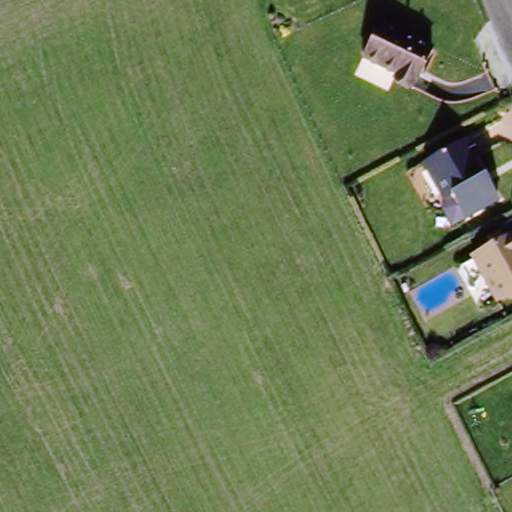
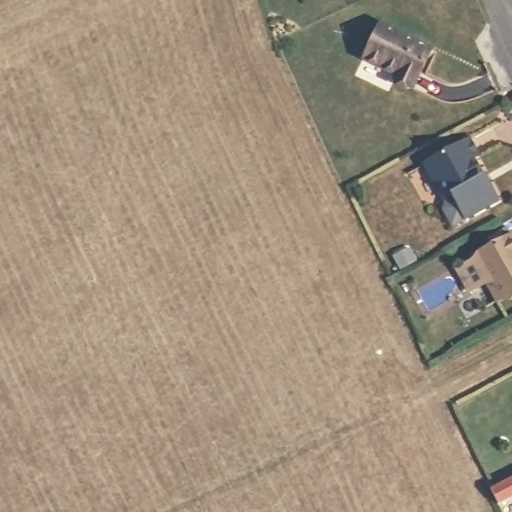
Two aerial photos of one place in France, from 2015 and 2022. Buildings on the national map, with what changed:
unchanged [(417,91),(400,82),(403,75),(370,59),(389,26),(438,51),(417,91)]
unchanged [(478,148),(472,151),(483,170),(480,172),(485,181),(490,179),(499,194),(466,213),(452,190),(446,193),(423,157),(468,131),(478,148)]
unchanged [(512,290),(498,298),(475,254),(510,234),(512,238),(512,290)]

